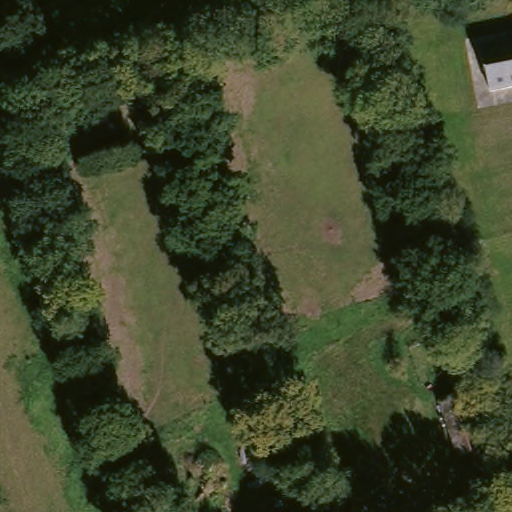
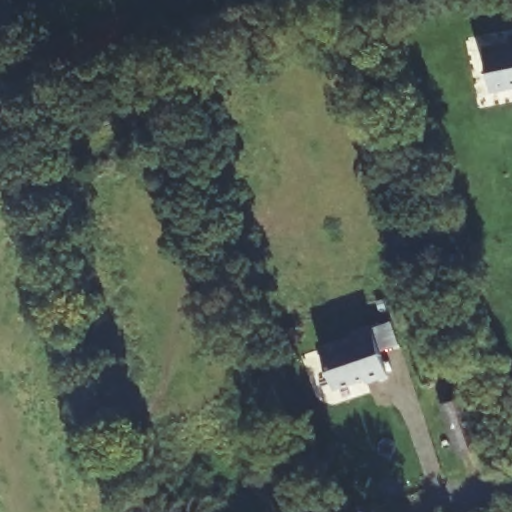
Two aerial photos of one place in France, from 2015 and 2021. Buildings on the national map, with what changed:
unchanged [(487,91),(481,56),(512,49),(512,86),(487,91)]
new [(386,349),(379,349),(388,375),(368,383),(367,379),(334,390),(321,348),(355,336),(353,333),(377,325),(386,349)]
unchanged [(485,448),(458,457),(440,405),(467,396),(485,448)]

